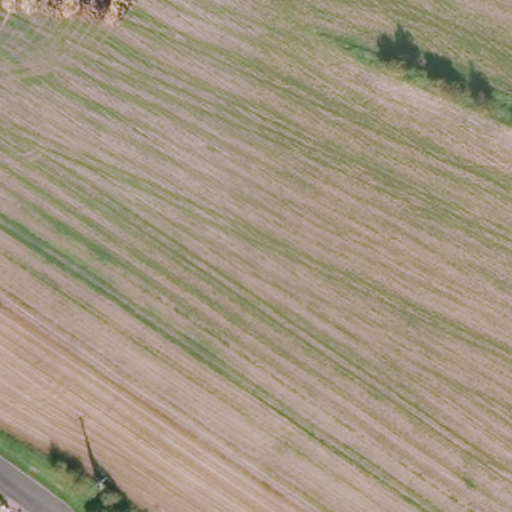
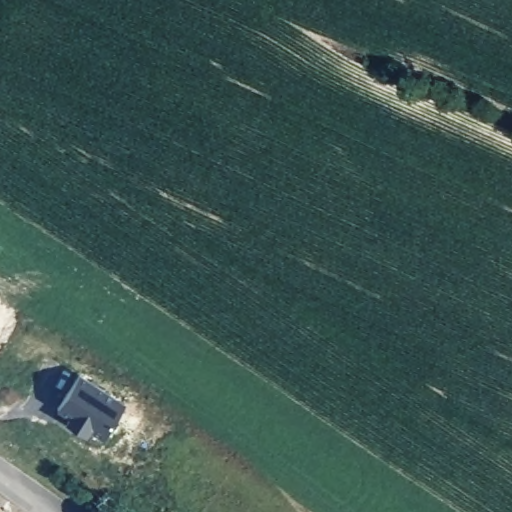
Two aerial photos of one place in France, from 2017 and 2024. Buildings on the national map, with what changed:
new [(81,375),(126,405),(104,439),(91,431),(88,436),(67,423),(71,417),(58,409),(81,375)]

